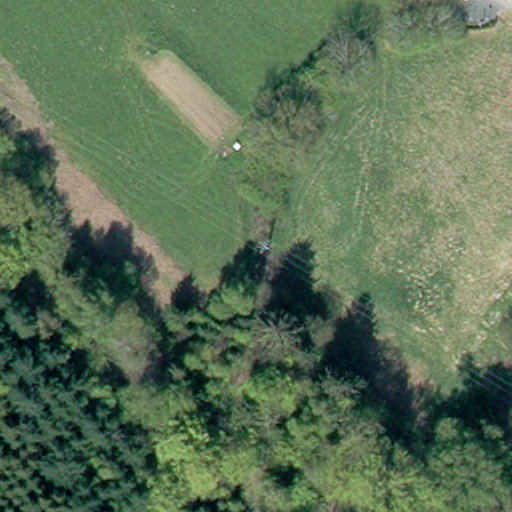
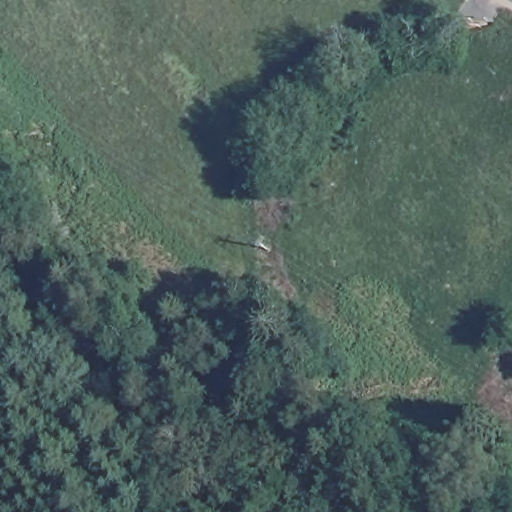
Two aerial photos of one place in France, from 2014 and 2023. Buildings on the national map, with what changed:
[]

